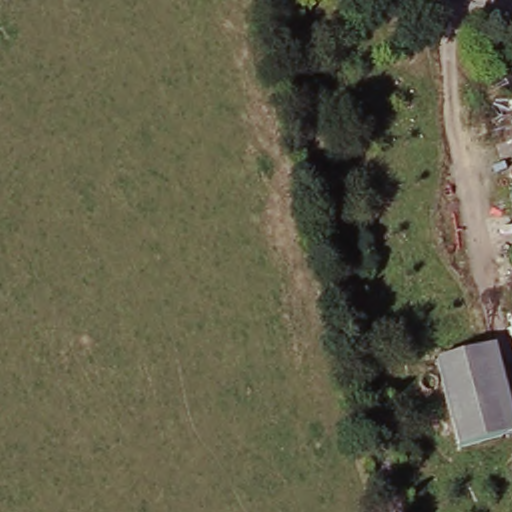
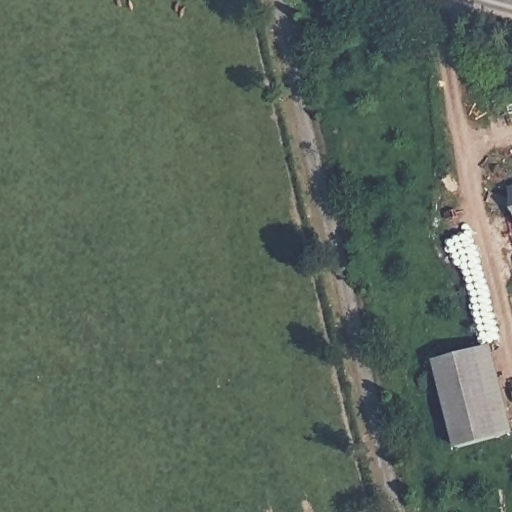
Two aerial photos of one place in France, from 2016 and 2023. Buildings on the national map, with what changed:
unchanged [(512,408),(512,435),(461,452),(436,368),(496,353),(512,408)]

